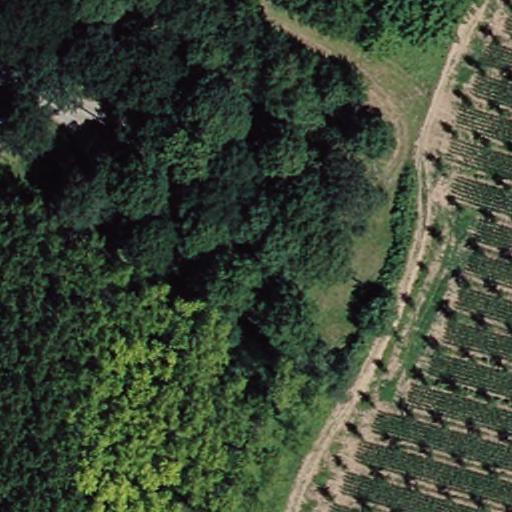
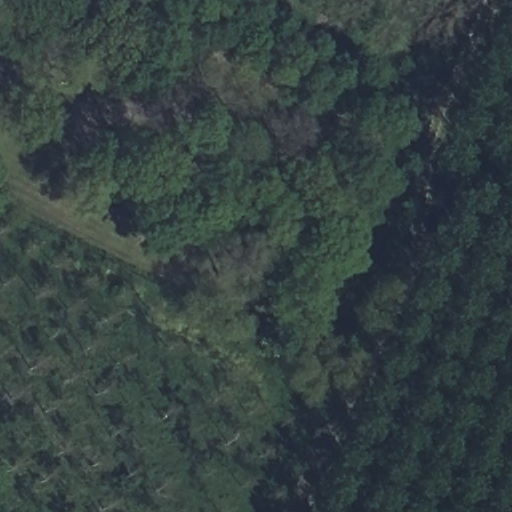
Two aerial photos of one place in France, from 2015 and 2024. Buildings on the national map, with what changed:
unchanged [(5,9),(9,2),(19,7),(15,15),(5,9)]

